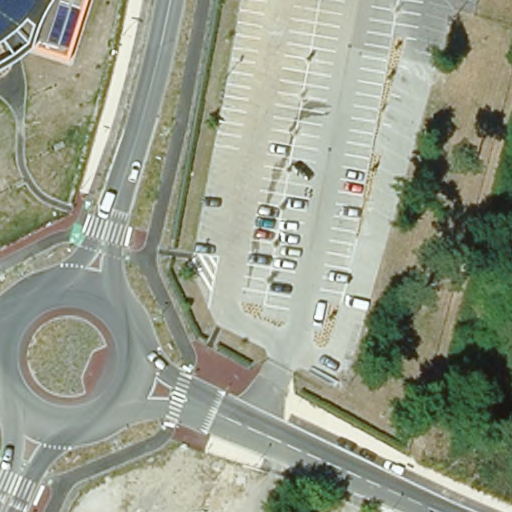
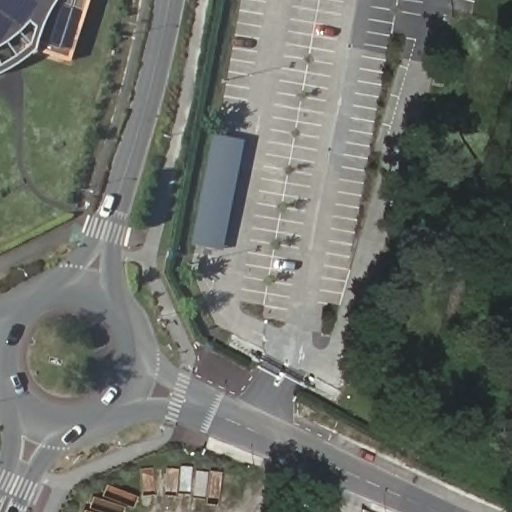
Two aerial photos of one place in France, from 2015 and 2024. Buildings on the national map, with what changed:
unchanged [(88,0),(69,60),(36,50),(33,48),(12,65),(0,70),(0,0),(88,0)]
new [(222,250),(191,244),(212,134),(242,140),(222,250)]

